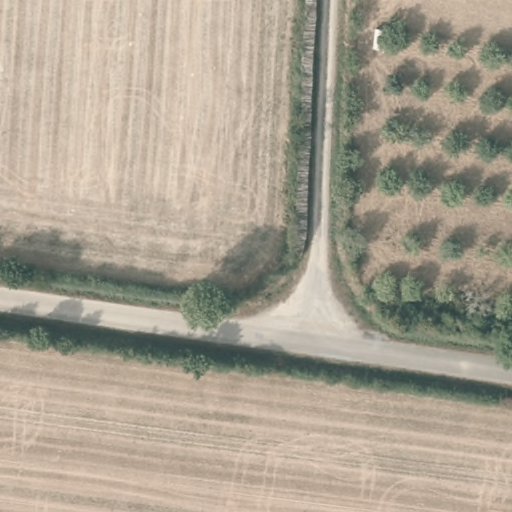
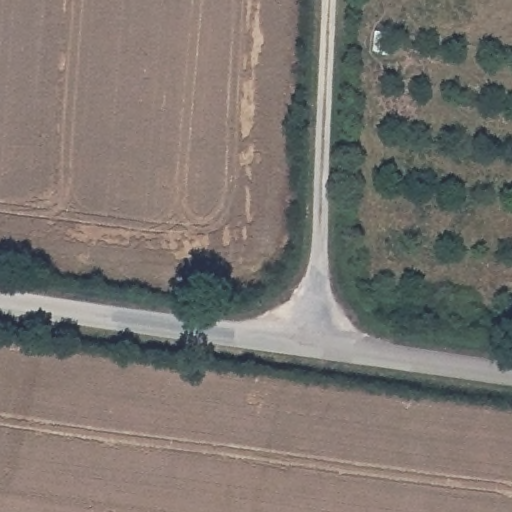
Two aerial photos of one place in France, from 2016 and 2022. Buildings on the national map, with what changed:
unchanged [(375,27),(404,29),(402,52),(388,51),(374,50),(375,27)]

